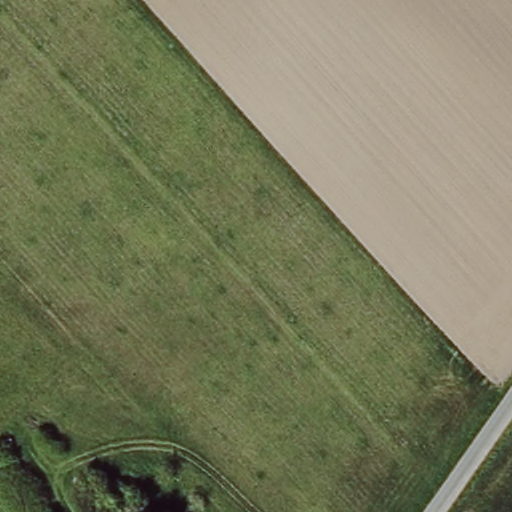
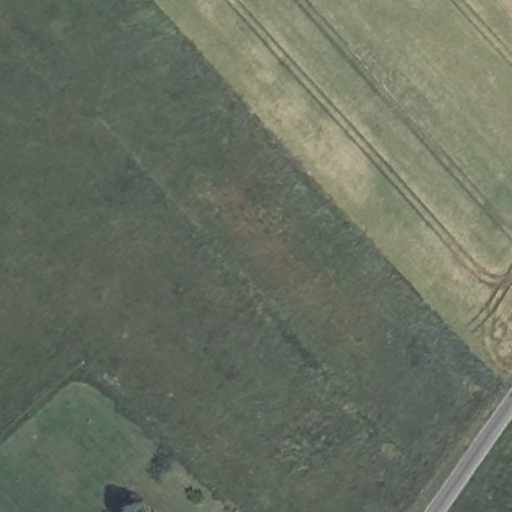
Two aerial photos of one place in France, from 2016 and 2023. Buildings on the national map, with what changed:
unchanged [(129,512),(115,512),(122,506),(129,512)]

